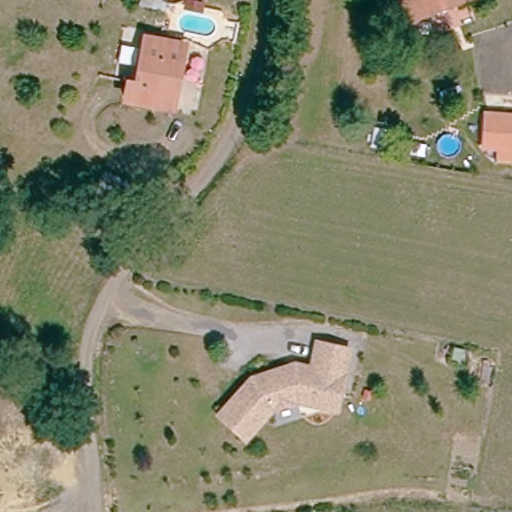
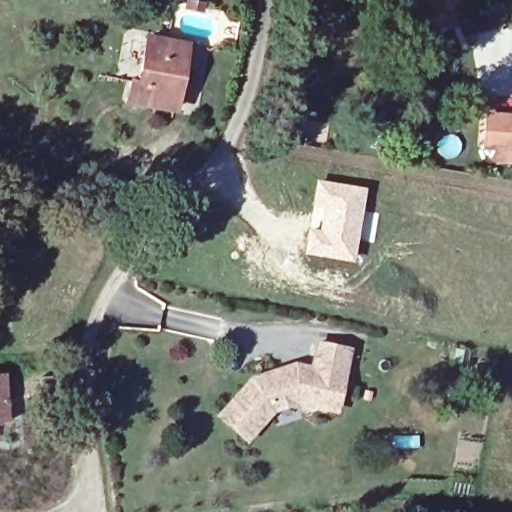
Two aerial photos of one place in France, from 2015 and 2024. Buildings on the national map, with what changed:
unchanged [(401,0),(472,0),(408,23),(401,0)]
unchanged [(202,19),(187,16),(189,10),(204,13),(202,19)]
unchanged [(171,113),(120,102),(124,83),(135,86),(144,43),(183,51),(171,113)]
unchanged [(495,146),(498,116),(512,117),(512,147),(495,146)]
new [(310,216),(315,178),(365,187),(362,211),(378,213),(373,242),(356,238),(352,261),(302,253),(310,216)]
unchanged [(120,215),(94,207),(99,186),(125,194),(120,215)]
unchanged [(325,404),(295,400),(270,407),(245,438),(217,416),(247,378),(284,369),(286,371),(299,368),(301,365),(311,367),(315,341),(345,345),(340,389),(337,406),(325,404)]
new [(9,422),(0,423),(0,373),(5,372),(9,422)]

